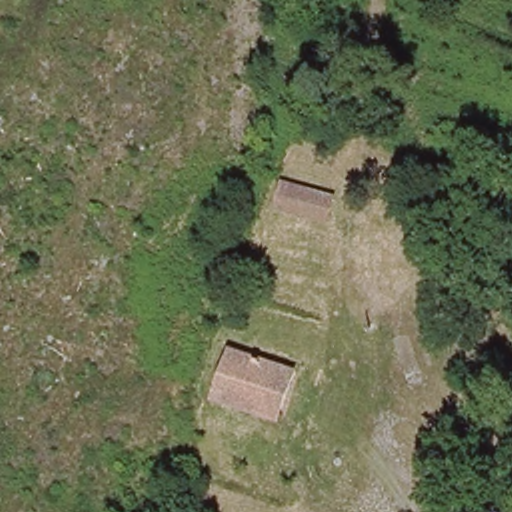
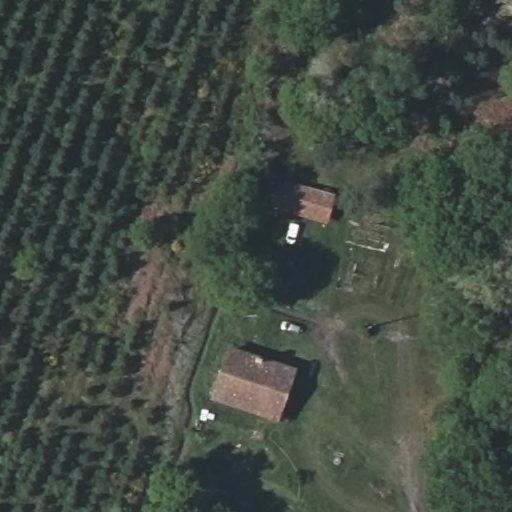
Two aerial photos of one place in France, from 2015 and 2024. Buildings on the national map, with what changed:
unchanged [(278,206),(286,181),(338,196),(329,224),(278,206)]
unchanged [(208,396),(226,346),(296,371),(278,420),(208,396)]
unchanged [(161,455),(170,429),(188,435),(180,460),(161,455)]

